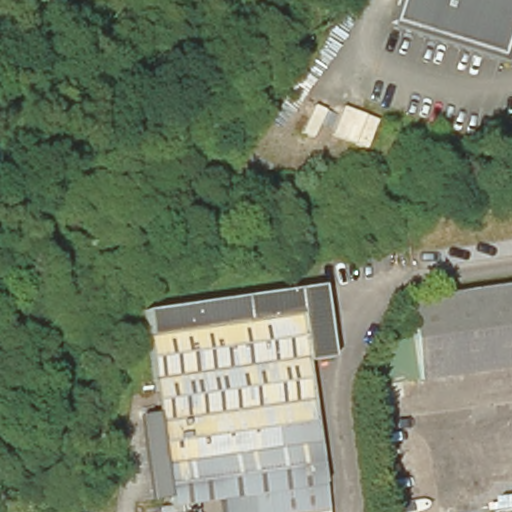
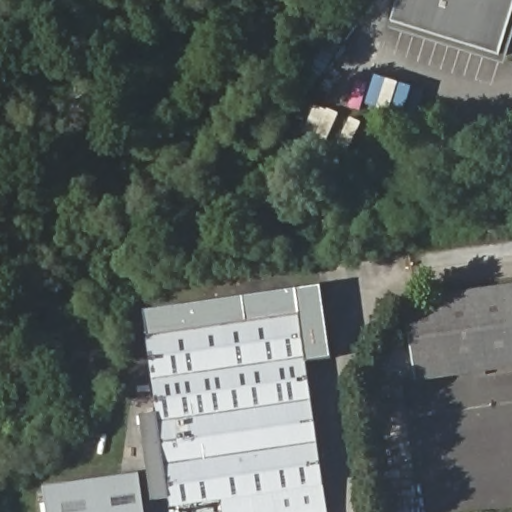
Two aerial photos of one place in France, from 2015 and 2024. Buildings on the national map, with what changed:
unchanged [(389,29),(397,0),(512,0),(512,14),(499,61),(389,29)]
unchanged [(325,512),(220,512),(219,501),(192,505),(168,506),(166,497),(149,500),(136,415),(155,412),(145,335),(140,309),(318,285),(329,357),(305,360),(325,512)]
unchanged [(405,304),(512,289),(512,366),(417,380),(405,304)]
new [(144,512),(47,512),(43,486),(139,473),(144,512)]

